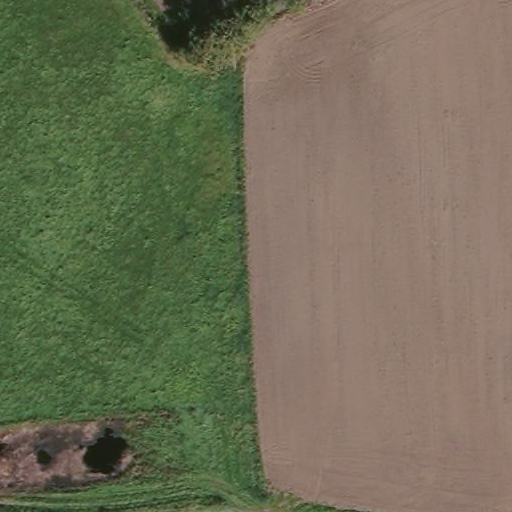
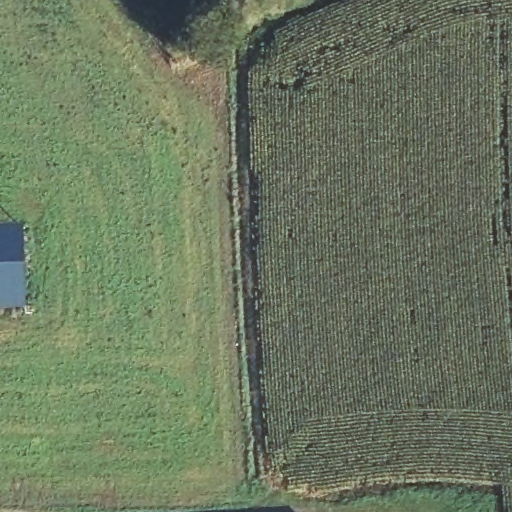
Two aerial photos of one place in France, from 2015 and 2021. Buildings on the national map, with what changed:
new [(0,312),(0,231),(23,230),(26,311),(0,312)]

